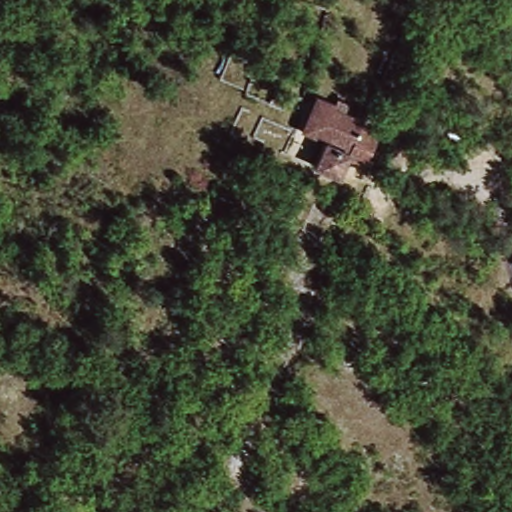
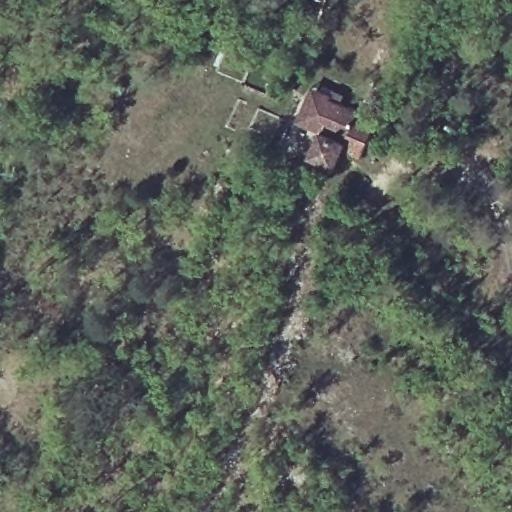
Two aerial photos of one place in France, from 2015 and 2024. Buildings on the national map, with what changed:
unchanged [(360,156),(341,149),(333,162),(310,150),(323,122),(306,114),(322,81),(336,87),(334,93),(363,106),(360,115),(378,125),(360,156)]

